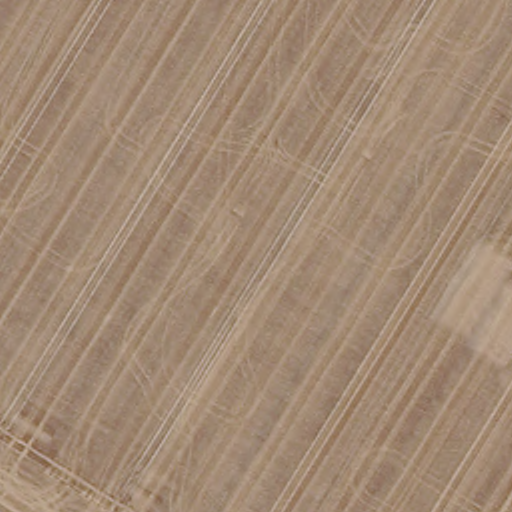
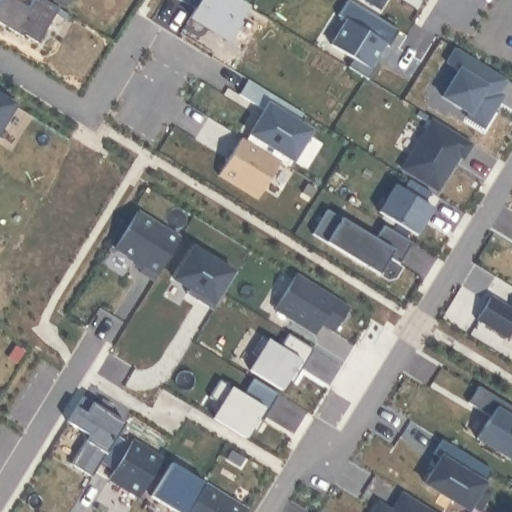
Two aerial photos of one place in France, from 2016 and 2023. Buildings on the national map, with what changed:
new [(13,0),(23,7),(28,0),(46,0),(56,6),(34,41),(19,32),(17,35),(0,23),(0,0),(13,0)]
new [(235,20),(239,22),(226,39),(188,15),(193,6),(183,0),(238,0),(246,5),(235,20)]
new [(385,46),(381,42),(370,57),(375,62),(364,80),(345,66),(352,58),(328,44),(344,20),(336,14),(345,0),(348,0),(396,29),(385,46)]
new [(363,0),(379,0),(375,7),(363,0)]
new [(503,79),(494,91),(498,93),(480,125),(463,115),(465,110),(440,96),(455,69),(445,62),(453,47),(503,79)]
new [(277,100),(273,108),(313,133),(293,169),(275,160),(246,142),(264,112),(241,99),(249,83),(277,100)]
new [(17,102),(0,128),(0,92),(17,102)]
new [(469,143),(460,157),(454,152),(433,189),(399,167),(431,118),(469,143)]
new [(246,142),(275,160),(252,197),(216,173),(239,137),(246,142)]
new [(429,206),(412,236),(375,214),(392,185),(429,206)]
new [(323,210),(372,237),(381,224),(408,239),(396,260),(386,254),(375,272),(310,233),(323,210)]
new [(175,237),(150,278),(137,270),(140,263),(112,247),(133,211),(175,237)]
new [(231,272),(208,308),(183,292),(187,287),(171,277),(189,247),(231,272)]
new [(346,306),(329,330),(317,321),(310,332),(271,309),(293,272),(346,306)]
new [(512,327),(508,324),(503,333),(474,317),(487,297),(512,313),(512,327)]
new [(257,357),(253,354),(264,338),(280,349),(288,336),(315,353),(305,370),(301,367),(282,396),(249,373),(257,357)]
new [(220,410),(208,401),(218,385),(240,398),(252,383),(276,398),(254,435),(249,431),(242,442),(212,422),(220,410)]
new [(512,466),(512,467),(476,444),(490,421),(468,408),(478,392),(512,413),(512,466)]
new [(124,424),(91,478),(70,466),(85,441),(82,432),(66,422),(80,397),(124,424)]
new [(157,457),(134,495),(106,477),(128,438),(157,457)]
new [(491,474),(482,490),(490,496),(480,511),(471,507),(468,512),(465,512),(425,487),(441,461),(434,457),(442,443),(491,474)]
new [(244,508),(242,512),(172,512),(146,495),(167,462),(244,508)]
new [(432,512),(368,512),(374,503),(386,510),(400,492),(432,512)]

